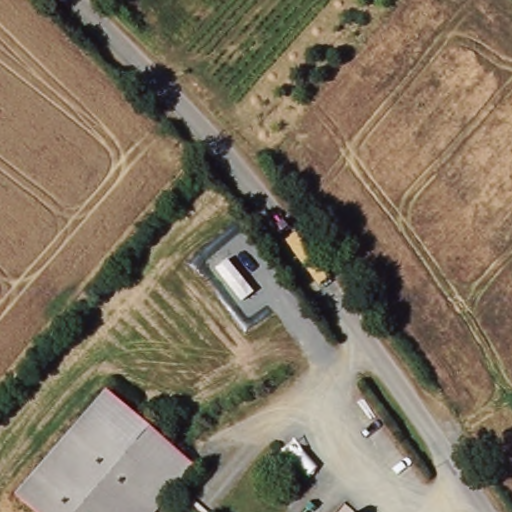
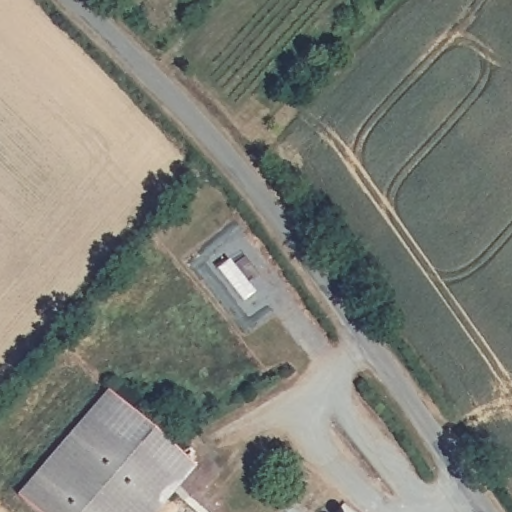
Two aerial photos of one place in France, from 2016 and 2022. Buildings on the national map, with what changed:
unchanged [(195,466),(155,512),(35,512),(17,497),(16,496),(66,439),(107,391),(107,390),(170,445),(192,463),(195,466)]

